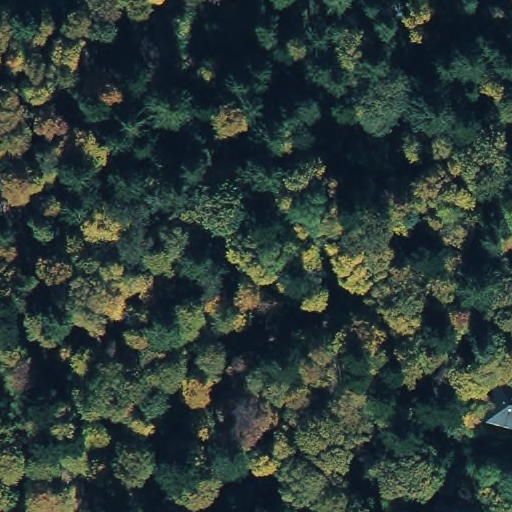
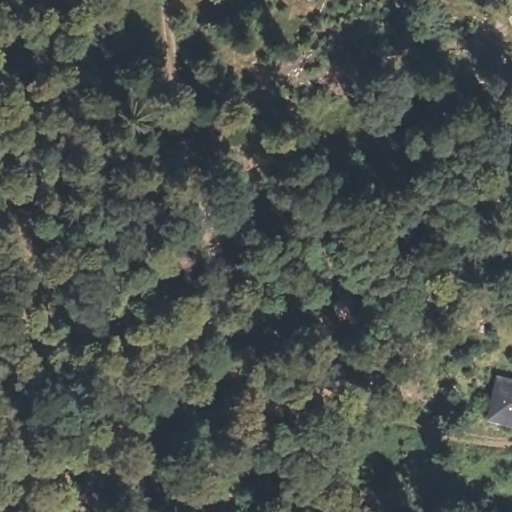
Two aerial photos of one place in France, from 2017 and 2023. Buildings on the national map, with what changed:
unchanged [(490,369),(512,375),(512,425),(476,415),(490,369)]

